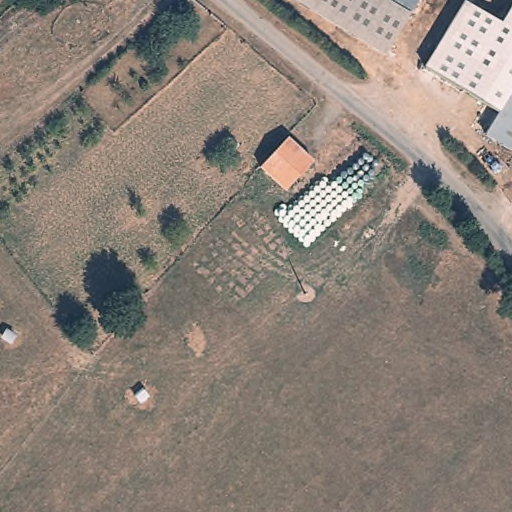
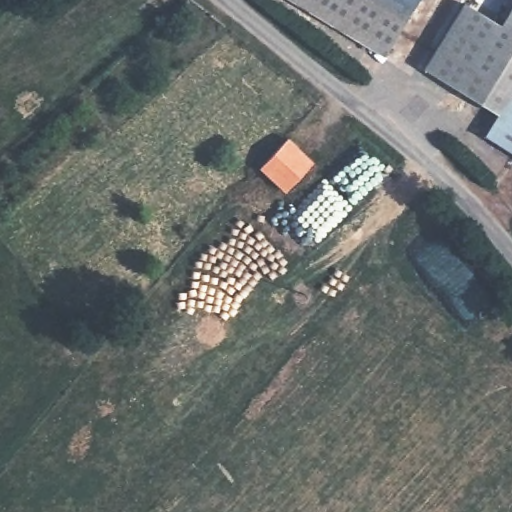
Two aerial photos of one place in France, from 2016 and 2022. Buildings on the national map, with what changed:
unchanged [(390,49),(307,0),(419,0),(390,49)]
unchanged [(485,135),(512,91),(512,152),(485,135)]
unchanged [(317,162),(287,194),(260,168),(288,137),(317,162)]

